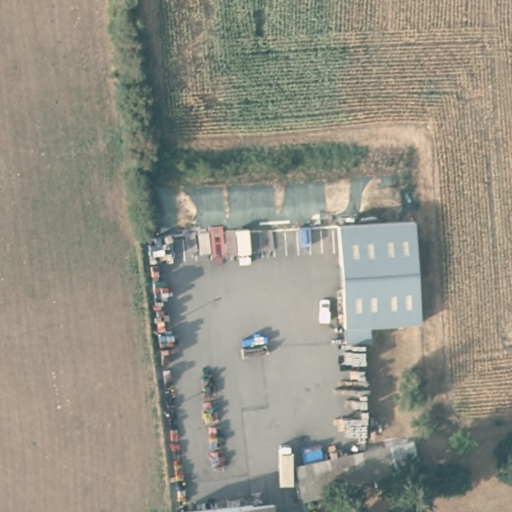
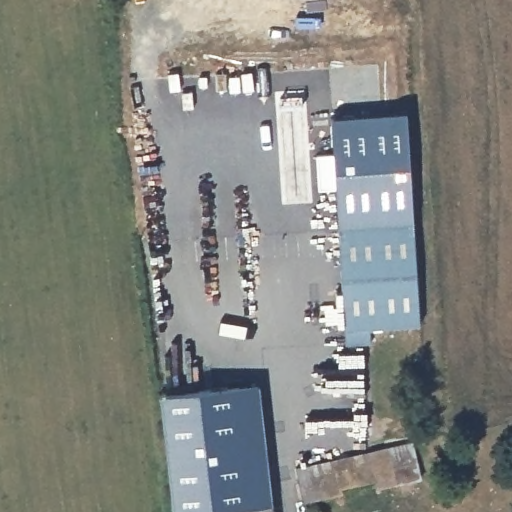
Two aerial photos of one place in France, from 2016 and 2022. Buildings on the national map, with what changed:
new [(338,224),(334,190),(316,190),(314,153),(332,154),(329,114),(405,109),(414,221),(338,224)]
unchanged [(414,221),(421,326),(371,328),(372,342),(343,344),(338,224),(414,221)]
new [(256,383),(272,512),(172,512),(158,393),(256,383)]
unchanged [(376,489),(374,479),(367,448),(407,439),(417,480),(376,489)]
unchanged [(374,479),(339,486),(340,489),(299,498),(293,466),(367,448),(374,479)]
demolished [(183,512),(183,509),(261,501),(262,511),(260,512),(183,512)]
demolished [(262,512),(260,512),(262,511),(262,512)]

